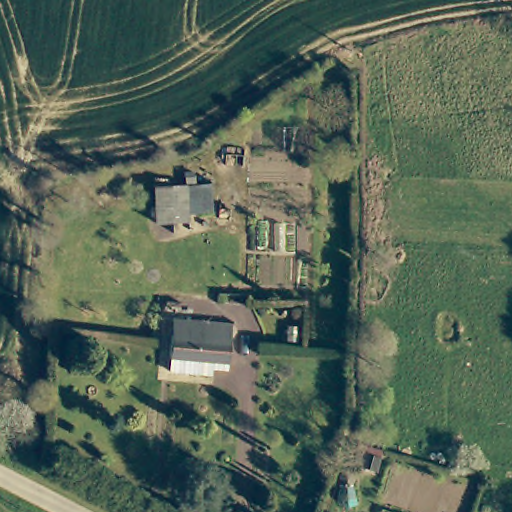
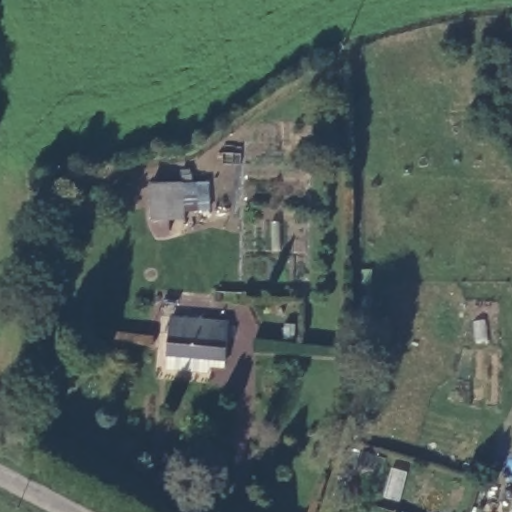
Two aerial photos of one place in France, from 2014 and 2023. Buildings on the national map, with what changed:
unchanged [(153,185),(212,186),(211,214),(185,214),(186,221),(153,227),(153,185)]
unchanged [(168,371),(169,328),(224,329),(223,372),(168,371)]

